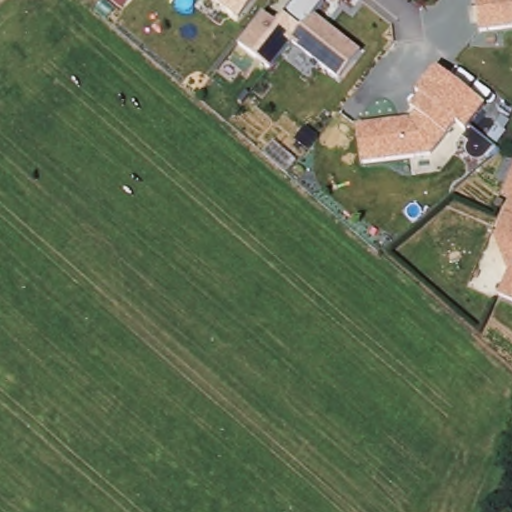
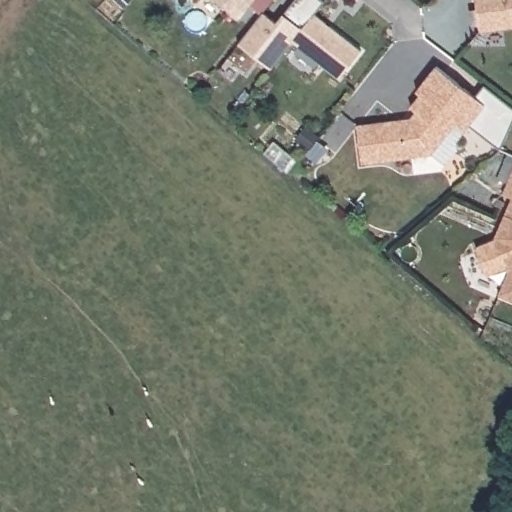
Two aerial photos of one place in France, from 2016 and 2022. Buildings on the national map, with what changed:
unchanged [(211,0),(254,0),(236,22),(211,0)]
unchanged [(289,43),(299,30),(282,15),(293,0),(320,0),(322,2),(313,14),(361,52),(338,81),(289,43)]
unchanged [(478,33),(473,0),(512,0),(512,29),(478,33)]
unchanged [(270,69),(239,46),(264,13),(276,23),(282,15),(299,30),(289,43),(292,45),(270,69)]
unchanged [(465,134),(453,124),(430,155),(359,164),(354,125),(408,119),(414,114),(408,108),(418,95),(415,93),(434,65),(485,105),(465,134)]
unchanged [(495,296),(505,270),(491,239),(507,198),(500,194),(504,184),(494,180),(506,154),(512,156),(512,303),(495,296)]

